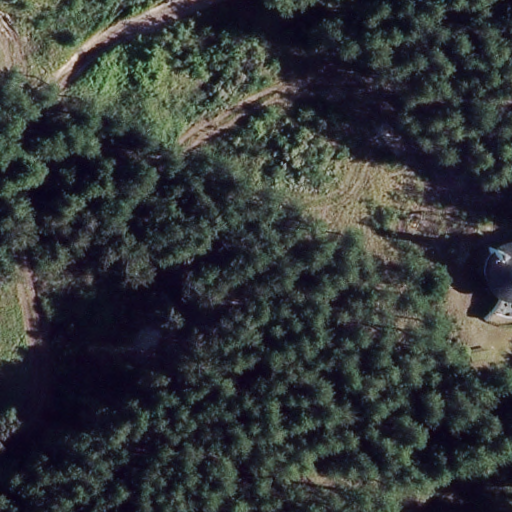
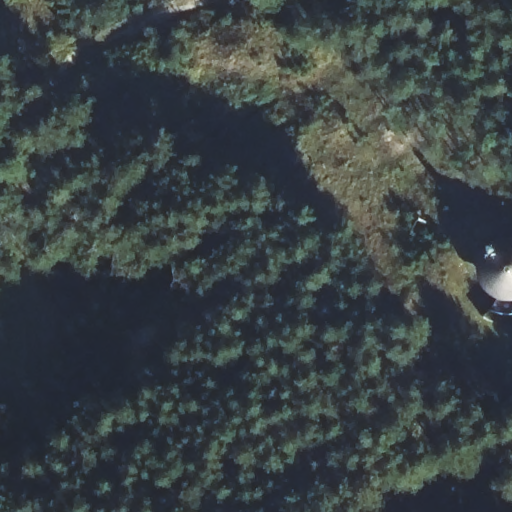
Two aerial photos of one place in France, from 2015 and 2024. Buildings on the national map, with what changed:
unchanged [(512,220),(512,292),(506,295),(483,290),(477,275),(476,254),(498,220),(512,220)]

